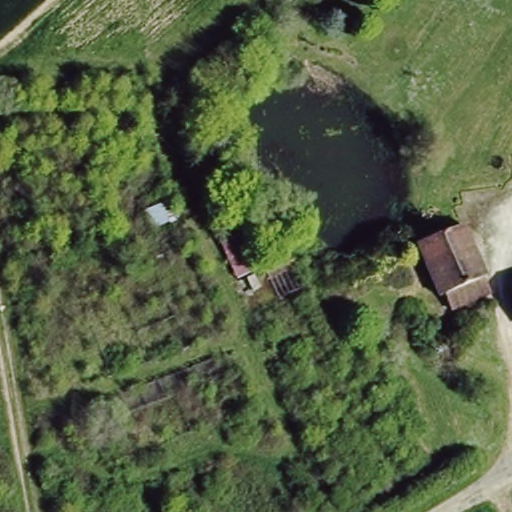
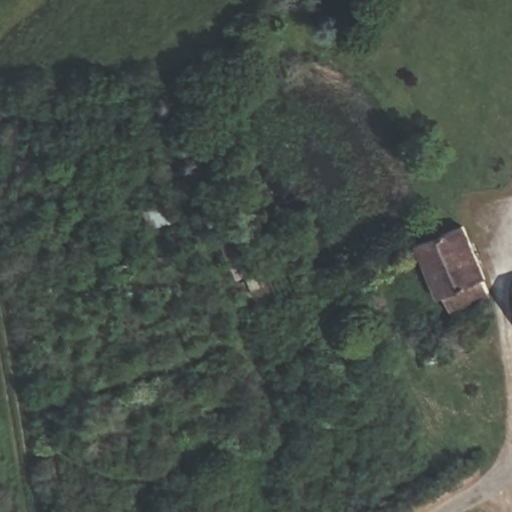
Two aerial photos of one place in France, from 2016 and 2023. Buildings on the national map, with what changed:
unchanged [(465,226),(487,296),(451,308),(448,294),(436,297),(415,241),(465,226)]

